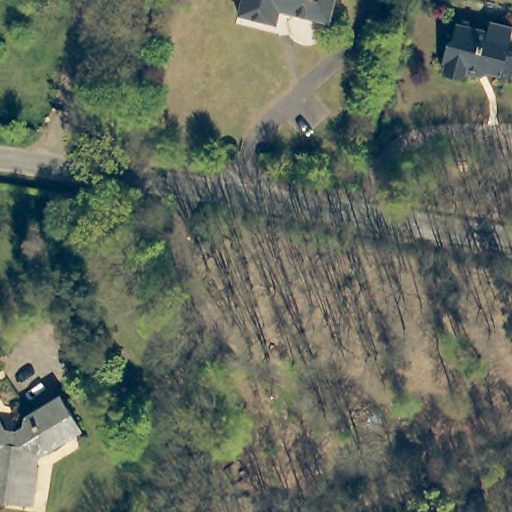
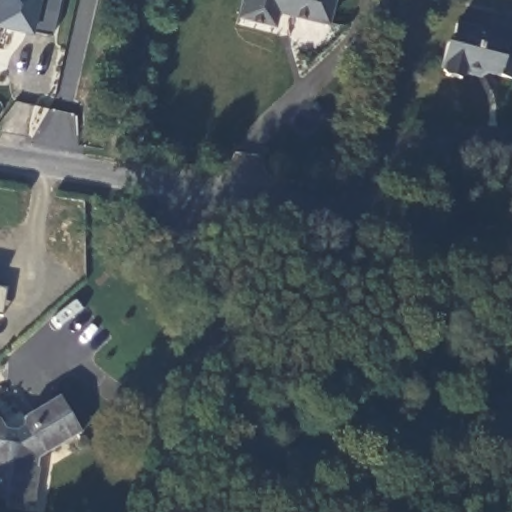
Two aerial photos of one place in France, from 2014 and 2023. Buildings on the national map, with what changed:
new [(0,23),(0,0),(59,0),(51,34),(0,23)]
unchanged [(241,15),(244,0),(336,0),(331,23),(280,10),(276,25),(241,15)]
unchanged [(485,18),(508,24),(504,45),(512,46),(512,69),(511,74),(494,70),(461,69),(459,76),(441,71),(442,59),(441,59),(445,42),(451,38),(454,23),(482,30),(485,18)]
new [(3,315),(0,314),(0,288),(6,289),(3,315)]
unchanged [(31,460),(30,468),(37,470),(30,505),(0,498),(0,417),(13,431),(20,431),(25,418),(67,405),(83,443),(31,460)]

